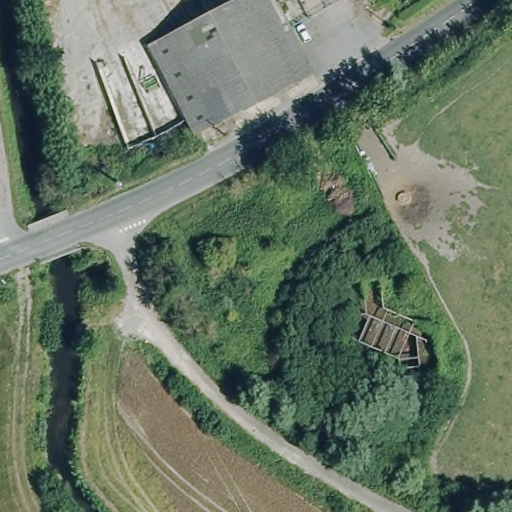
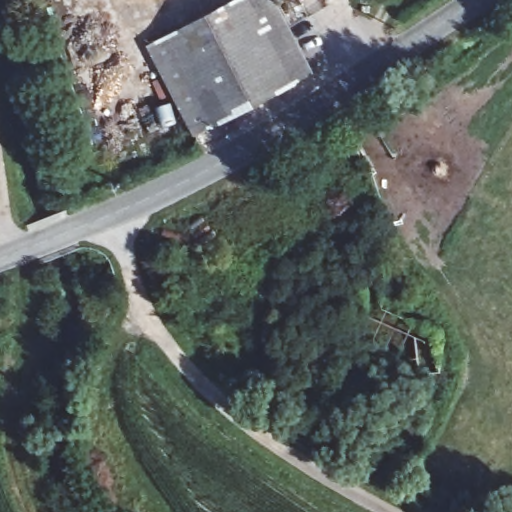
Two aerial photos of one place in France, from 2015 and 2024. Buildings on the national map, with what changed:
unchanged [(147,46),(239,0),(270,0),(306,75),(194,137),(147,46)]

